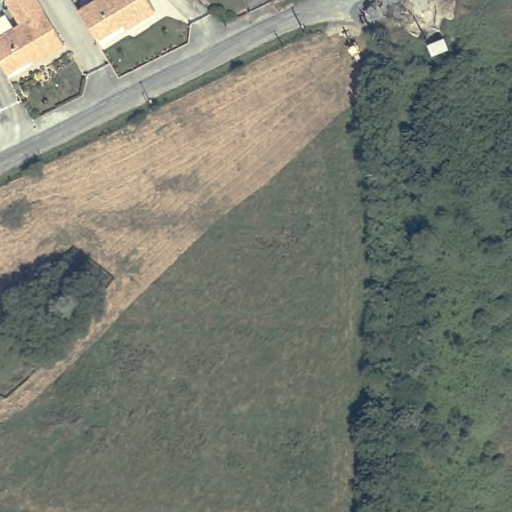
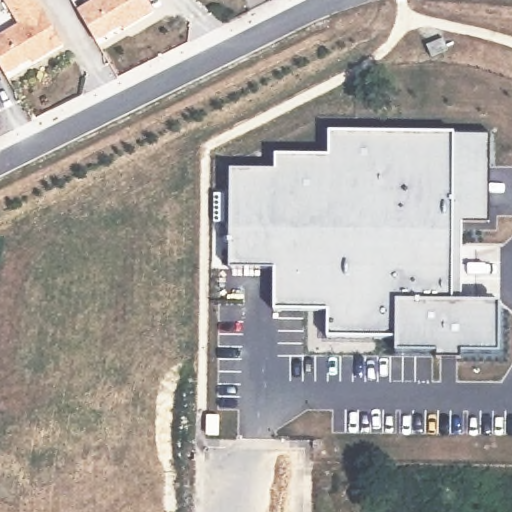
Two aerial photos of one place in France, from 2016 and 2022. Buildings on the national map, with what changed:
unchanged [(37,58),(35,55),(9,70),(0,55),(0,34),(22,20),(10,0),(42,0),(67,40),(37,58)]
unchanged [(152,10),(123,29),(121,25),(95,41),(95,42),(75,11),(93,0),(145,0),(152,10)]
demolished [(380,12),(372,11),(373,4),(381,5),(380,12)]
unchanged [(447,56),(433,62),(429,64),(428,63),(422,49),(423,48),(441,39),(449,55),(447,56)]
new [(488,222),(460,222),(459,302),(500,302),(500,353),(460,353),(460,357),(437,358),(436,351),(395,350),(395,339),(326,339),(326,313),(273,311),(273,271),(228,270),(229,170),(273,170),(273,156),(327,155),(327,132),(453,133),(488,134),(488,222)]

